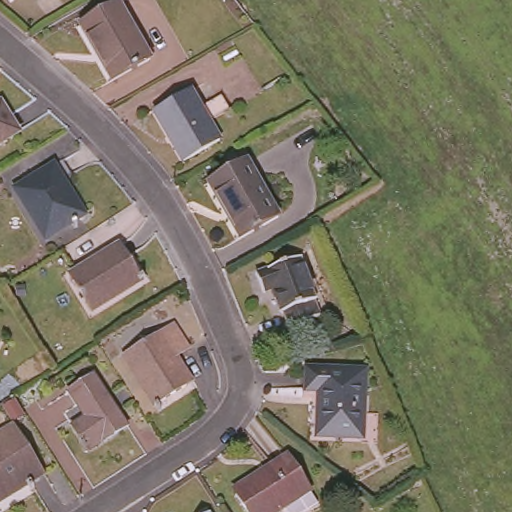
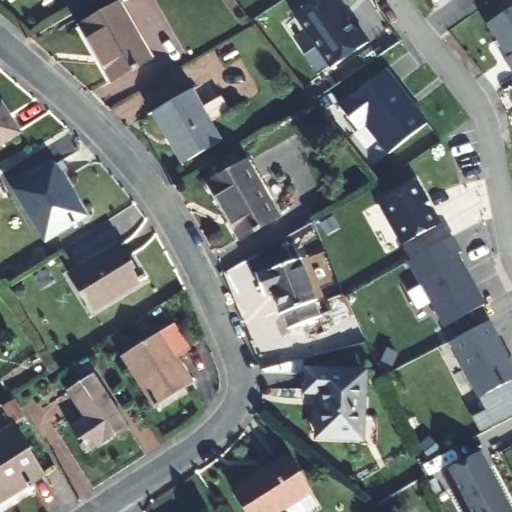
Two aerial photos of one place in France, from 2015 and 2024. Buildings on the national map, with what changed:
new [(338,0),(338,1),(337,8),(352,29),(356,26),(365,40),(328,65),(291,11),(307,0),(338,0)]
unchanged [(147,56),(108,79),(77,24),(114,2),(147,56)]
new [(512,70),(510,71),(502,58),(505,55),(483,22),(512,3),(512,70)]
new [(403,98),(402,100),(407,107),(409,106),(420,122),(379,150),(357,119),(350,125),(332,100),(381,66),(403,98)]
unchanged [(216,144),(180,164),(151,111),(187,91),(216,144)]
unchanged [(15,149),(0,158),(0,124),(15,149)]
unchanged [(280,212),(244,235),(210,182),(245,160),(280,212)]
unchanged [(82,217),(42,242),(10,193),(50,167),(82,217)]
new [(423,195),(418,197),(433,224),(400,243),(376,200),(413,179),(423,195)]
new [(450,235),(458,251),(454,253),(482,304),(442,327),(405,260),(450,235)]
unchanged [(138,281),(90,311),(67,277),(116,246),(138,281)]
unchanged [(320,299),(317,301),(323,317),(294,327),(288,310),(286,311),(277,287),(268,291),(262,272),(303,256),(320,299)]
new [(505,358),(509,360),(512,365),(512,377),(477,396),(448,340),(485,321),(505,358)]
unchanged [(192,354),(177,363),(193,390),(157,412),(127,363),(177,332),(192,354)]
unchanged [(358,370),(356,437),(314,435),(315,390),(303,390),(304,368),(358,370)]
unchanged [(127,425),(88,450),(71,422),(83,414),(68,391),(95,373),(127,425)]
unchanged [(43,472),(0,499),(0,432),(13,423),(43,472)]
new [(476,451),(493,482),(490,483),(494,491),(497,490),(508,512),(461,512),(439,470),(476,451)]
unchanged [(312,495),(285,512),(248,512),(235,492),(289,459),(312,495)]

